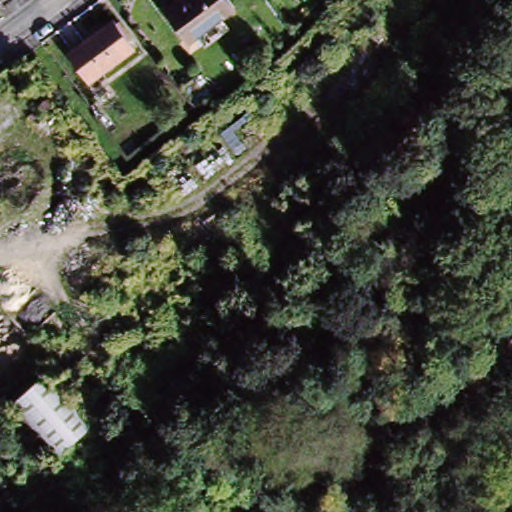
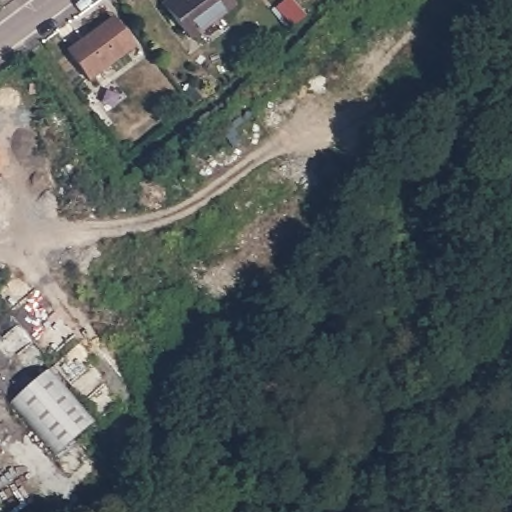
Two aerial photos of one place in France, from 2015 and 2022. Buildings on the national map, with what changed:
unchanged [(226,0),(230,4),(184,38),(159,4),(164,0),(226,0)]
unchanged [(114,23),(134,50),(88,82),(68,55),(114,23)]
unchanged [(92,424),(54,457),(11,404),(48,371),(92,424)]

